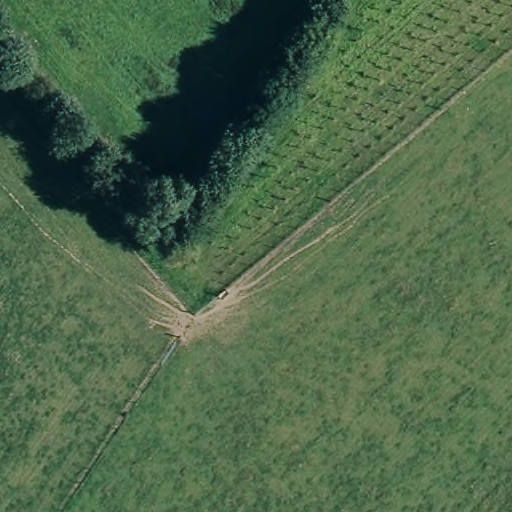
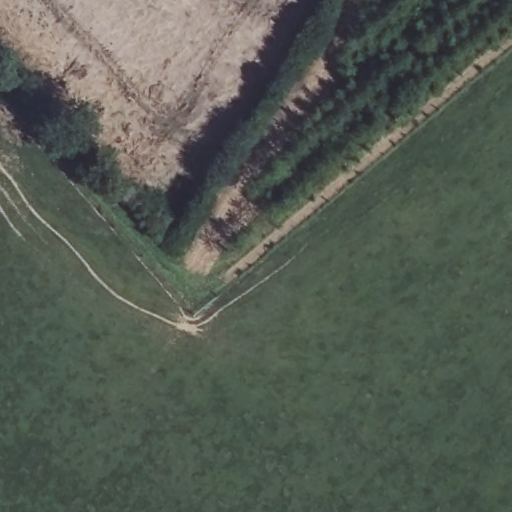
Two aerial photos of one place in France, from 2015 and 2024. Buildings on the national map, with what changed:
[]

